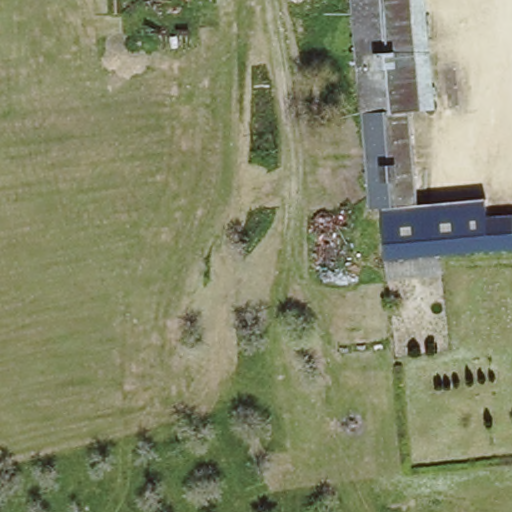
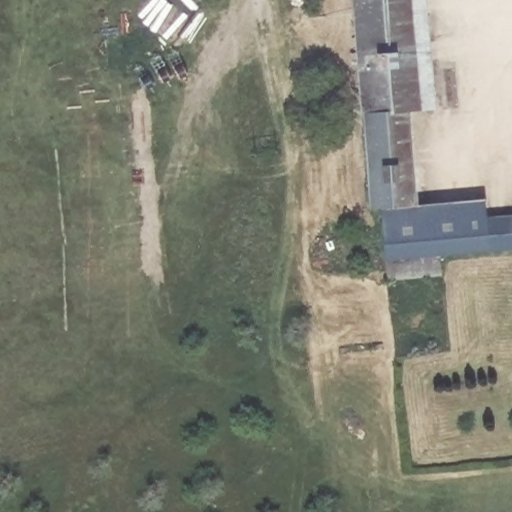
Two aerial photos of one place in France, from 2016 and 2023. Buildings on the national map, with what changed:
unchanged [(363,118),(358,0),(415,0),(421,116),(415,116),(363,118)]
unchanged [(418,205),(379,208),(368,208),(363,118),(415,116),(418,205)]
unchanged [(383,265),(381,225),(379,208),(418,205),(420,222),(422,262),(383,265)]
unchanged [(470,216),(512,211),(512,252),(473,256),(470,216)]
unchanged [(422,262),(420,222),(470,216),(473,256),(422,262)]

